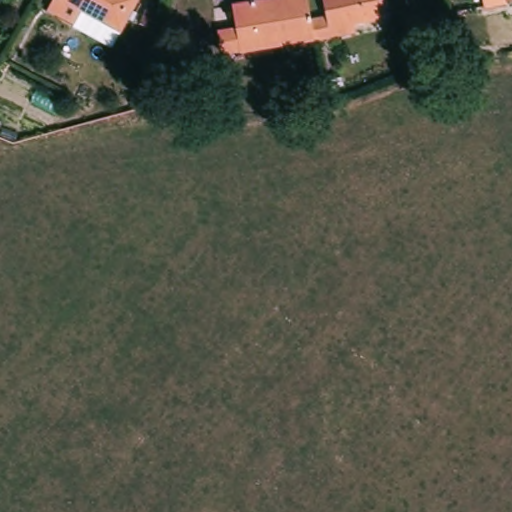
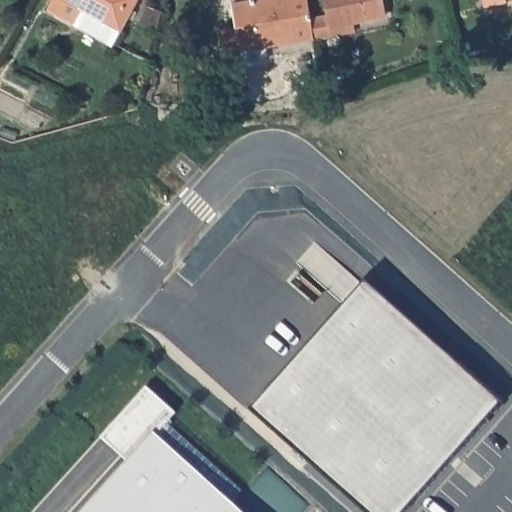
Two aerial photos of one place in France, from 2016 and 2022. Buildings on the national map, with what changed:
unchanged [(140,0),(115,44),(48,5),(51,0),(140,0)]
unchanged [(238,33),(234,11),(281,0),(308,0),(316,39),(242,56),(226,59),(221,36),(238,33)]
unchanged [(384,0),(387,16),(332,29),(326,0),(384,0)]
unchanged [(487,0),(510,0),(488,5),(487,0)]
new [(501,399),(402,512),(367,512),(250,408),(362,280),(501,399)]
new [(100,437),(145,387),(172,412),(152,431),(243,512),(78,512),(125,461),(100,437)]

